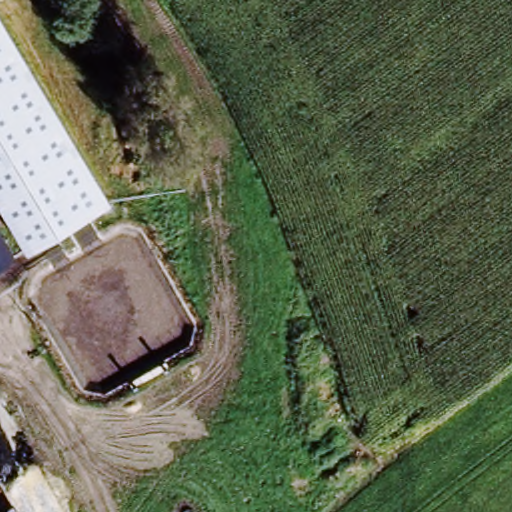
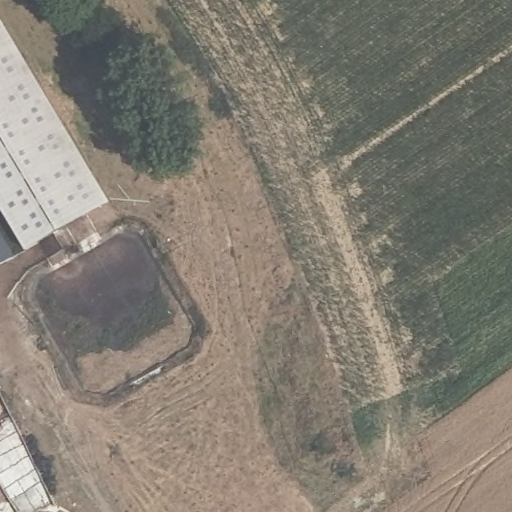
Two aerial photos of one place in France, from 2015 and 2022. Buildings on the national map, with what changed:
unchanged [(0,208),(0,19),(111,204),(27,253),(0,208)]
unchanged [(15,255),(0,263),(0,231),(15,255)]

